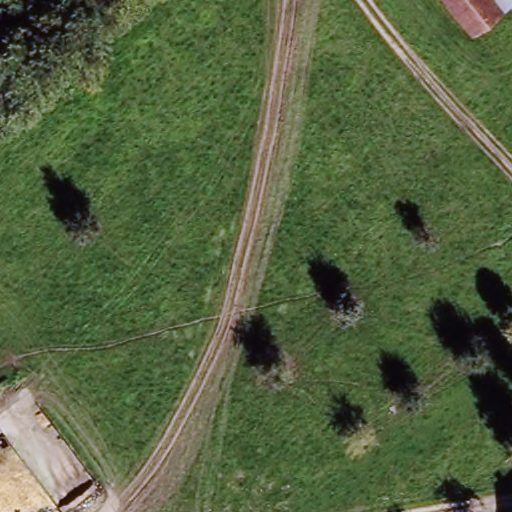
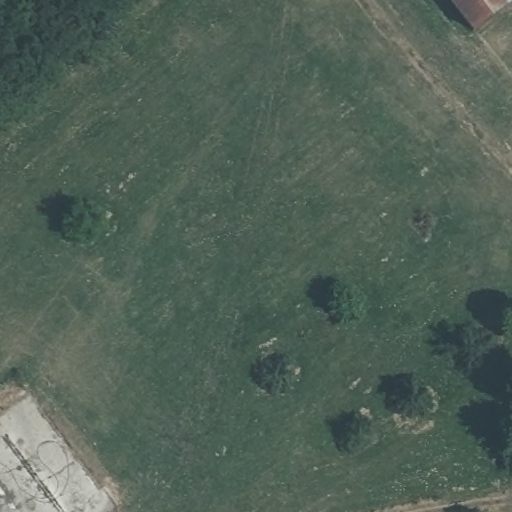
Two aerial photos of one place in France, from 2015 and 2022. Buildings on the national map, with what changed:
unchanged [(443,0),(496,0),(502,8),(470,34),(443,0)]
unchanged [(496,0),(512,0),(502,8),(496,0)]

